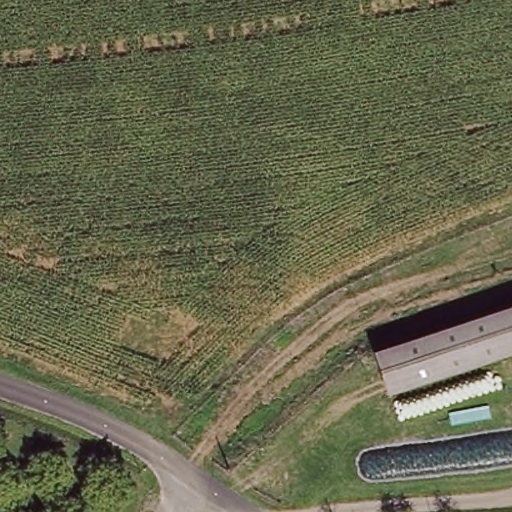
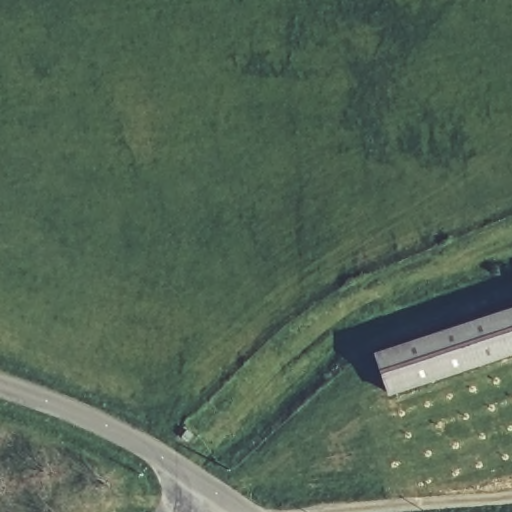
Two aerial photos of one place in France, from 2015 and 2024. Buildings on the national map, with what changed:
unchanged [(390,348),(512,306),(512,352),(402,388),(390,348)]

